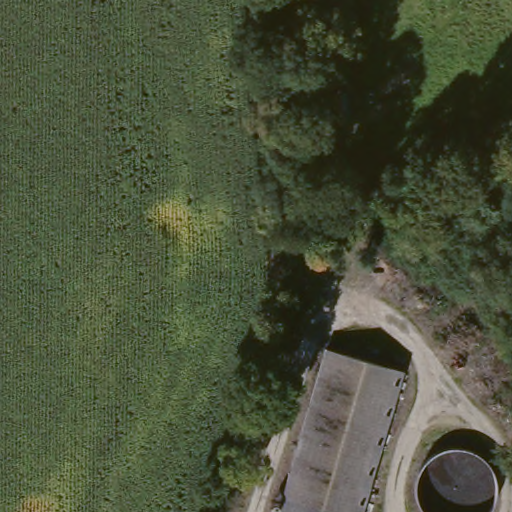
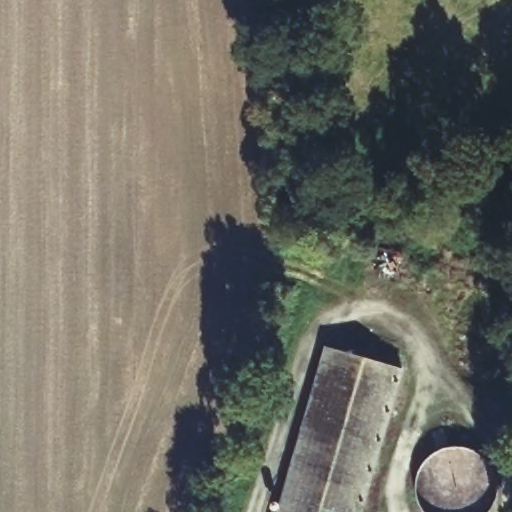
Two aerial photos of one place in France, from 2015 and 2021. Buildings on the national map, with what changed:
unchanged [(326,348),(401,371),(360,512),(278,512),(326,348)]

